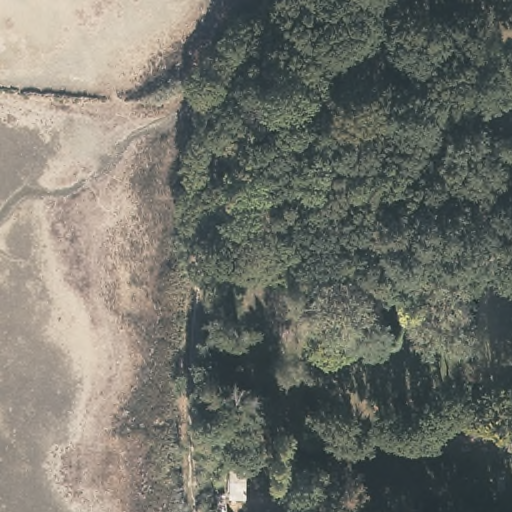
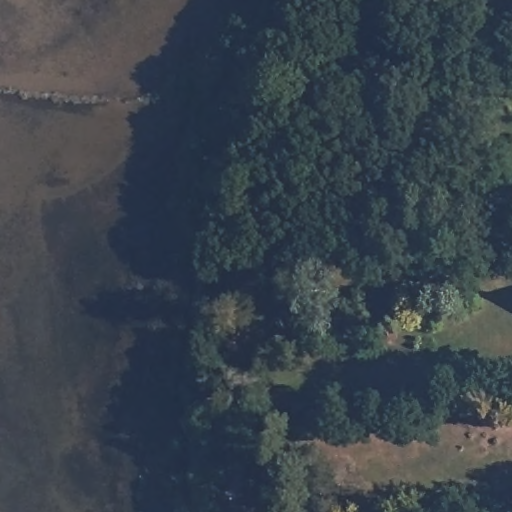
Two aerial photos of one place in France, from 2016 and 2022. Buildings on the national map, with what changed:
unchanged [(370,344),(356,345),(354,322),(368,322),(370,344)]

